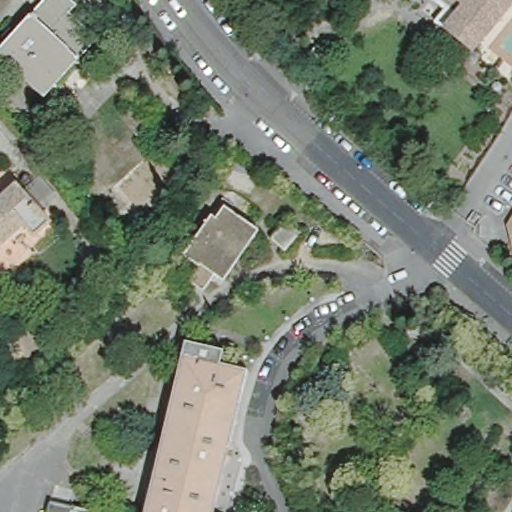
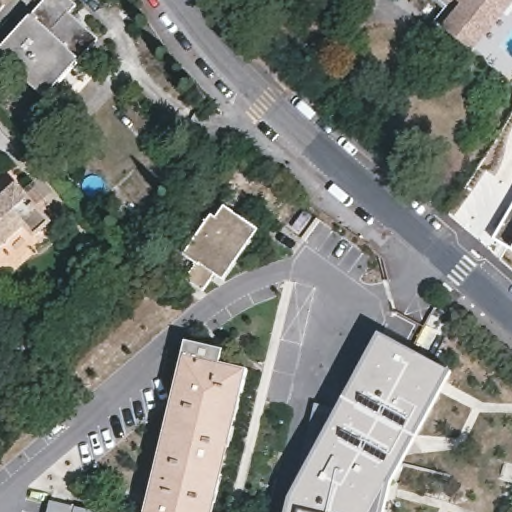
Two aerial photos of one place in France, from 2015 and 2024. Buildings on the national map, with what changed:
unchanged [(71,10),(101,37),(47,96),(0,54),(0,48),(44,0),(74,0),(77,2),(71,10)]
unchanged [(437,30),(447,18),(455,10),(448,3),(446,5),(439,0),(507,0),(489,21),(474,40),(464,52),(437,30)]
unchanged [(24,190),(32,182),(50,201),(42,209),(52,219),(36,234),(26,224),(0,245),(0,198),(18,182),(24,190)]
unchanged [(219,276),(209,290),(188,275),(198,262),(187,254),(210,221),(215,225),(228,206),(260,230),(246,250),(225,280),(219,276)]
unchanged [(301,232),(286,251),(271,240),(286,220),(301,232)]
new [(315,402),(340,402),(377,332),(450,371),(390,483),(382,512),(285,512),(289,496),(315,402)]
unchanged [(180,381),(186,347),(224,355),(221,370),(249,376),(221,512),(156,512),(183,382),(180,381)]
unchanged [(47,512),(49,503),(88,512),(47,512)]

